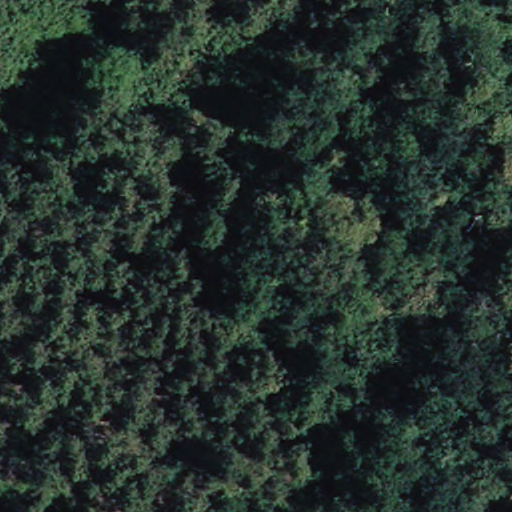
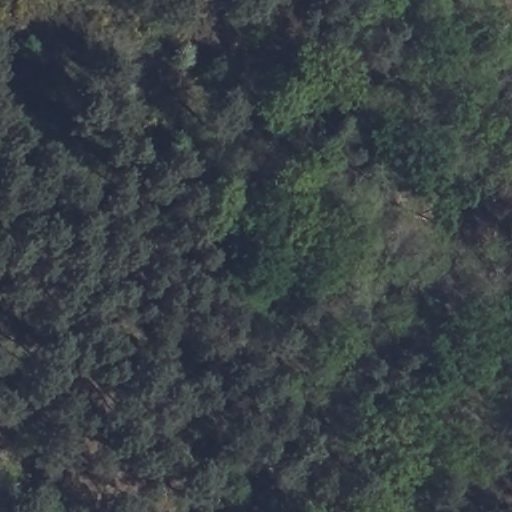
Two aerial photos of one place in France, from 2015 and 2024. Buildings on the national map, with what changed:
[]

